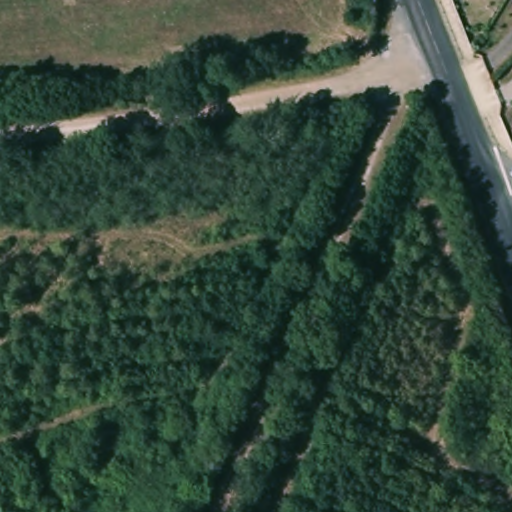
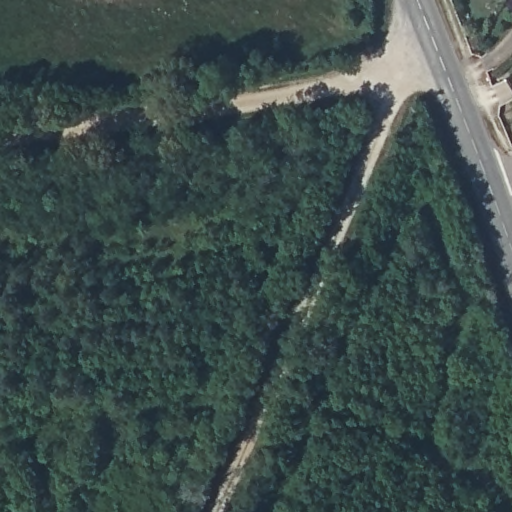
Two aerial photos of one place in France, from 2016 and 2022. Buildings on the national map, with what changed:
[]

